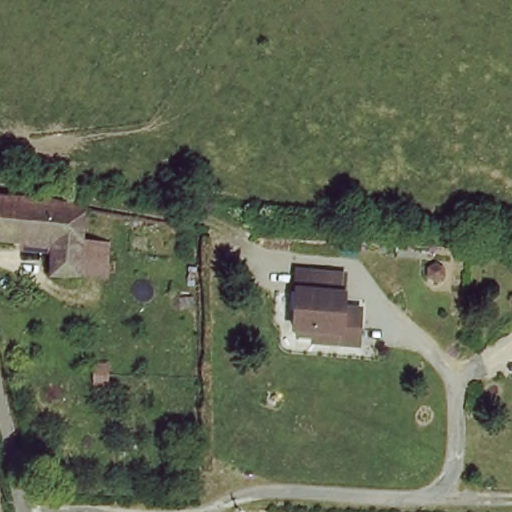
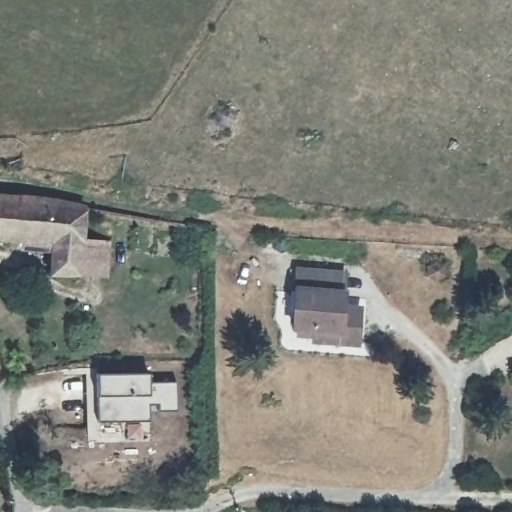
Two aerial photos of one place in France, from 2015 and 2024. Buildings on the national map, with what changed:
unchanged [(49,238),(0,236),(0,198),(53,203),(81,209),(80,239),(49,238)]
unchanged [(79,274),(47,272),(49,238),(80,239),(79,274)]
unchanged [(82,240),(117,241),(112,280),(80,272),(82,240)]
unchanged [(296,324),(292,324),(295,267),(339,270),(337,304),(358,305),(356,340),(314,338),(295,336),(296,324)]
new [(97,395),(97,374),(147,375),(147,382),(176,383),(175,410),(158,409),(157,403),(148,404),(147,420),(97,421),(97,395)]

